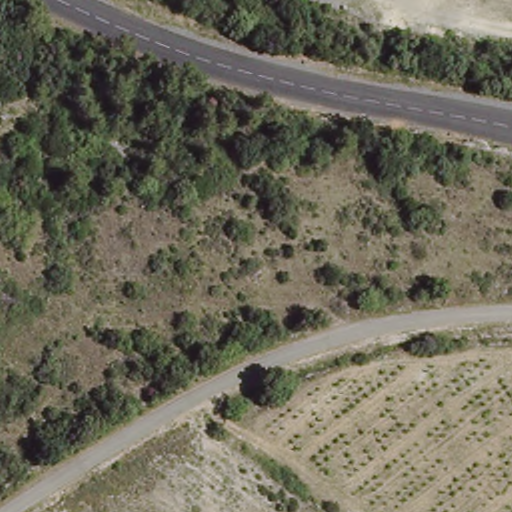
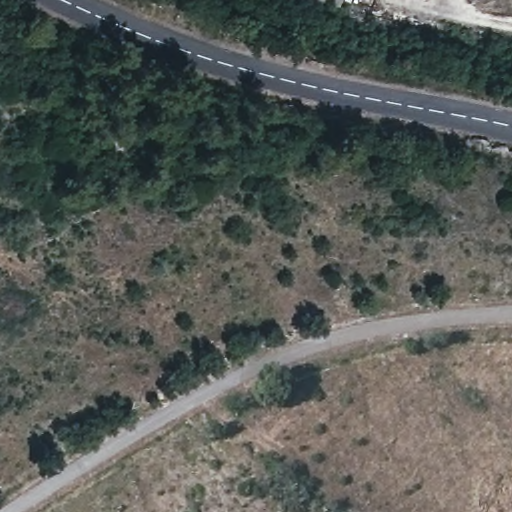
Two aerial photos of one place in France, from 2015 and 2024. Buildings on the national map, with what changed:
unchanged [(342,7),(317,0),(343,0),(342,7)]

